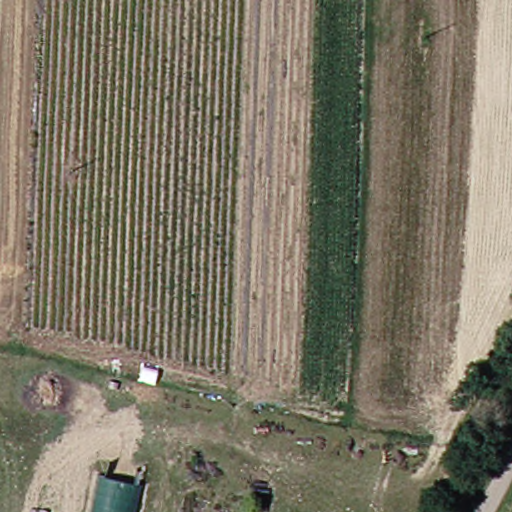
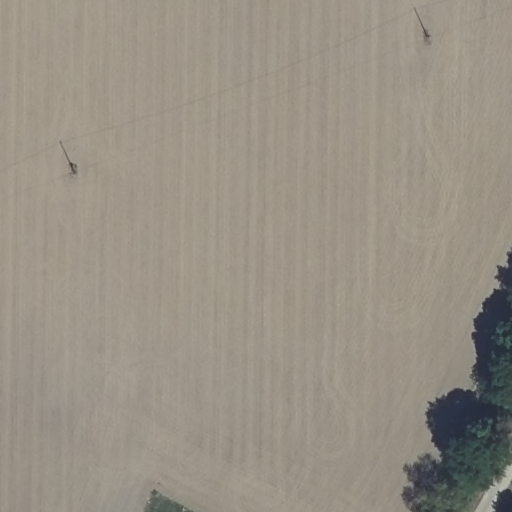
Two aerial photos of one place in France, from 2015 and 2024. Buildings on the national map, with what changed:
demolished [(145,478),(137,512),(92,512),(101,471),(145,478)]

